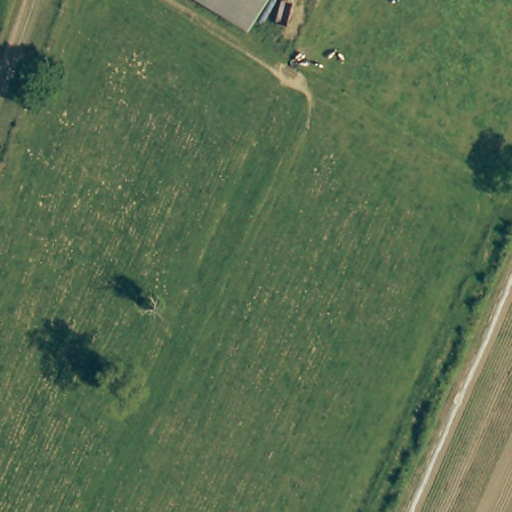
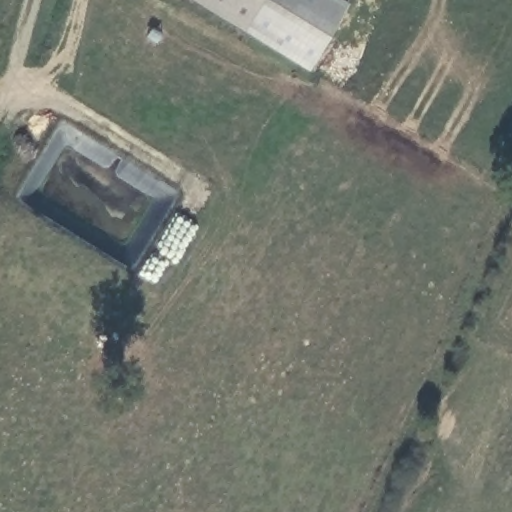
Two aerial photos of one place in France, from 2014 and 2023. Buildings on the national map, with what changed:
unchanged [(193,0),(267,0),(248,34),(193,0)]
new [(338,0),(344,4),(305,71),(248,34),(267,0),(338,0)]

